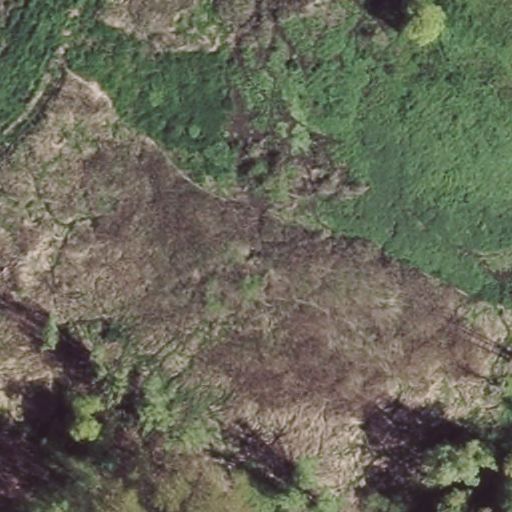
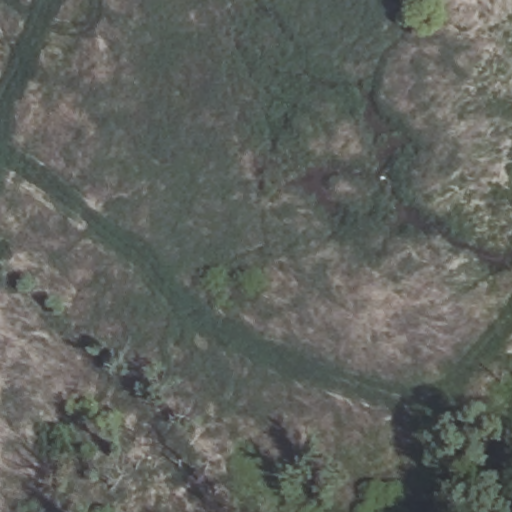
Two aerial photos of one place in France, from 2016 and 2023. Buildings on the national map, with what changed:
[]

